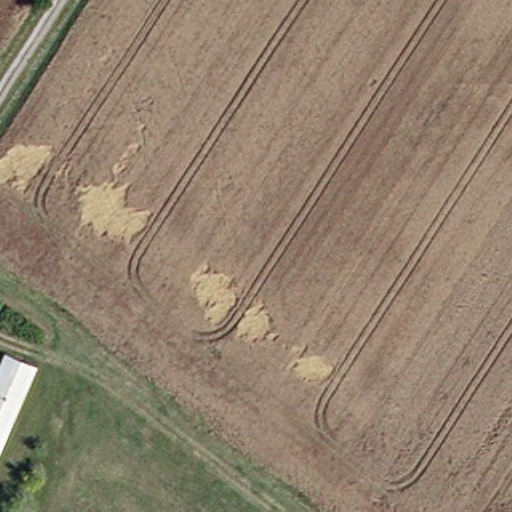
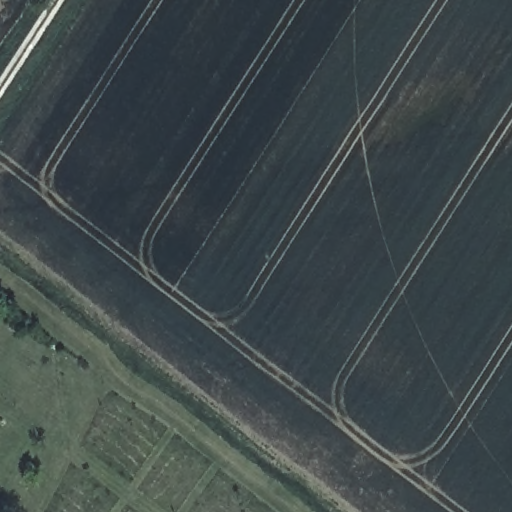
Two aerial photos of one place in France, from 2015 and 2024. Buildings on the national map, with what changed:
demolished [(7,354),(34,366),(0,437),(0,369),(7,354)]

